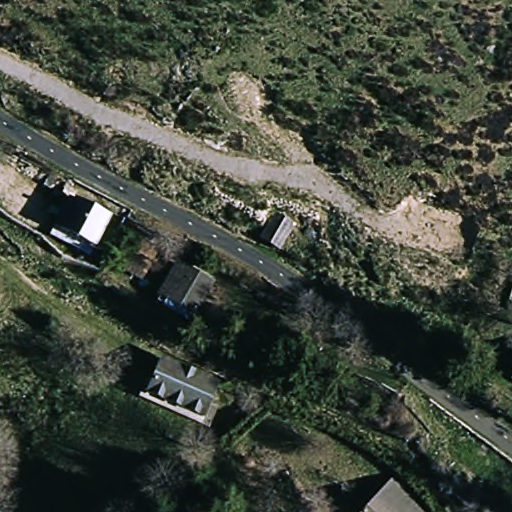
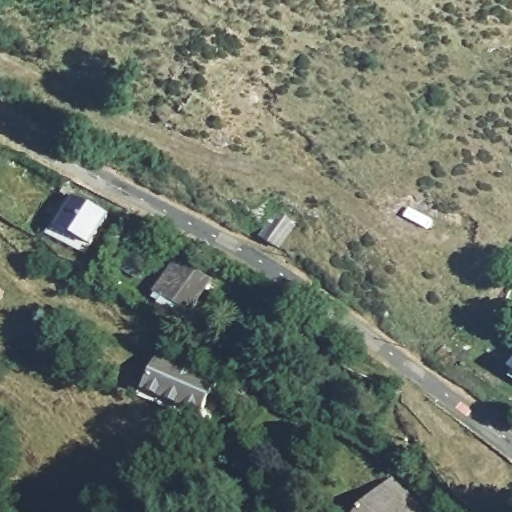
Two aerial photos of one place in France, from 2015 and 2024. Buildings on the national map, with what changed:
unchanged [(113,224),(102,252),(61,230),(76,204),(113,224)]
unchanged [(174,269),(201,286),(188,307),(162,291),(174,269)]
unchanged [(205,417),(148,396),(161,357),(218,379),(205,417)]
unchanged [(430,506),(425,512),(362,512),(394,475),(430,506)]

